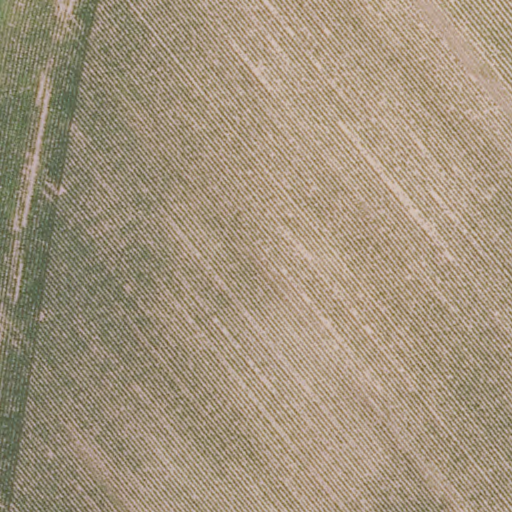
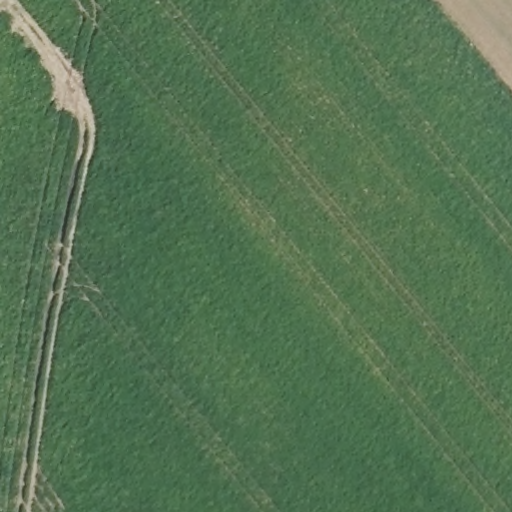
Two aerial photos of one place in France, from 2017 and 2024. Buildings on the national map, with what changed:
[]

